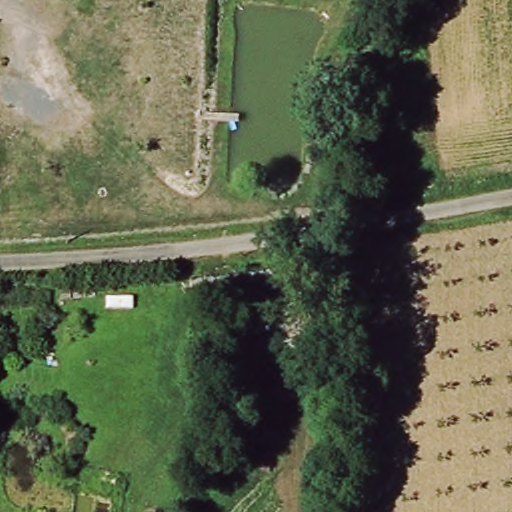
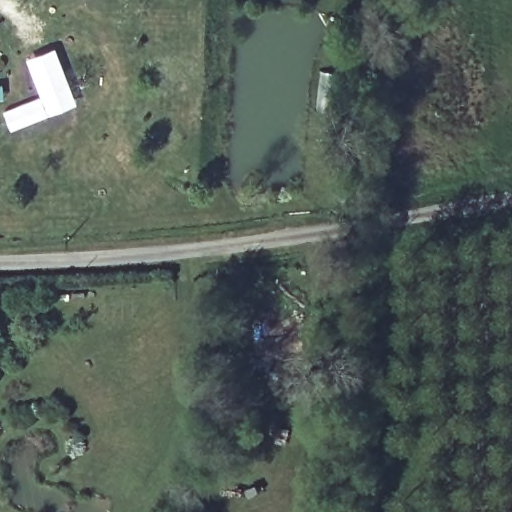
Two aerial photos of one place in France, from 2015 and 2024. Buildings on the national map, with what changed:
new [(56,47),(78,104),(12,131),(4,111),(41,95),(27,58),(56,47)]

